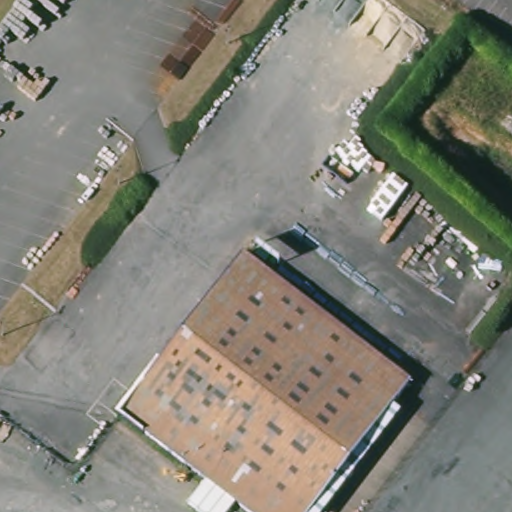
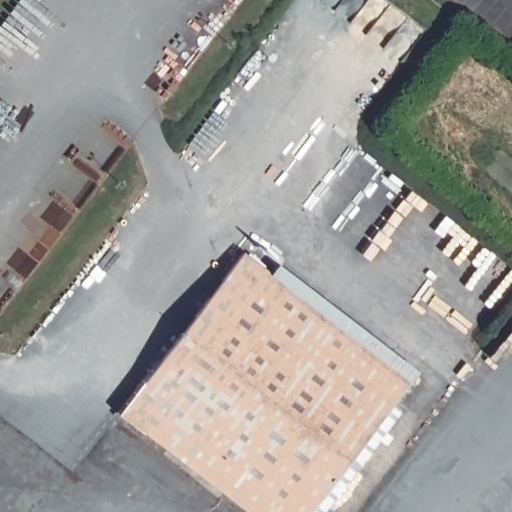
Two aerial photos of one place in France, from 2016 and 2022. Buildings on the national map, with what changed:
unchanged [(320,512),(246,512),(117,412),(239,253),(415,388),(320,512)]

